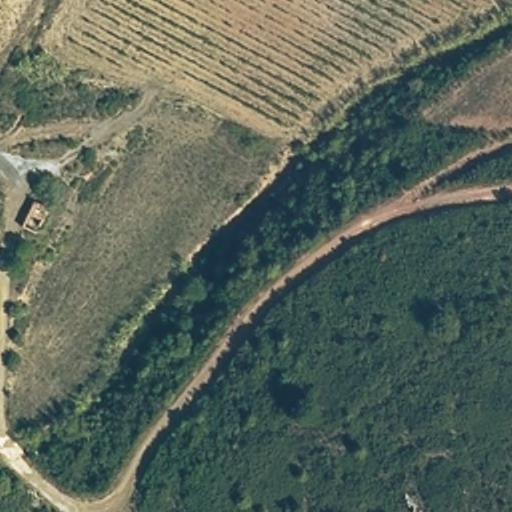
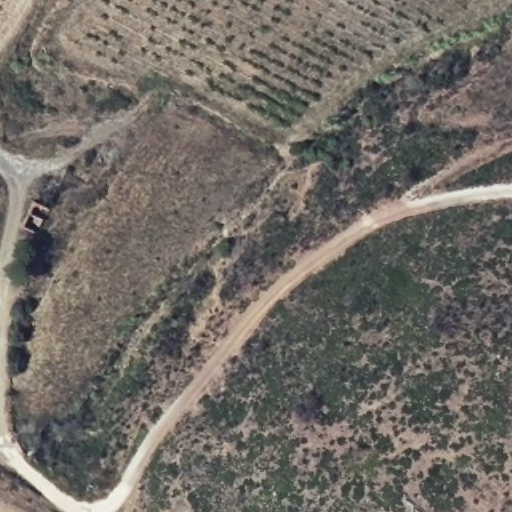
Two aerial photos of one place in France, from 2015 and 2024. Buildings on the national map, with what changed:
unchanged [(49,210),(35,233),(20,226),(35,201),(49,210)]

